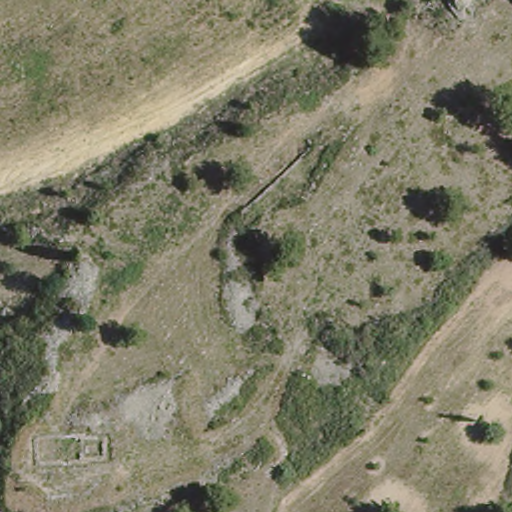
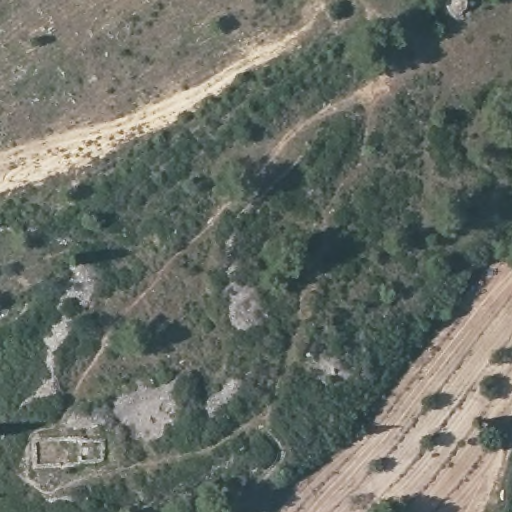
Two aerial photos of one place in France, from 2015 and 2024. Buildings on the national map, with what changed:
unchanged [(476,8),(460,20),(447,4),(454,0),(469,0),(476,8)]

